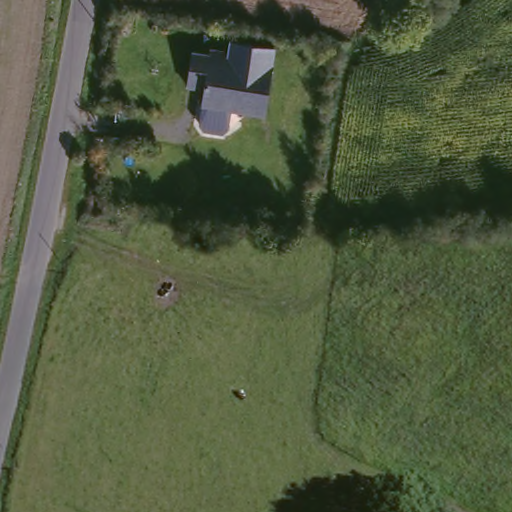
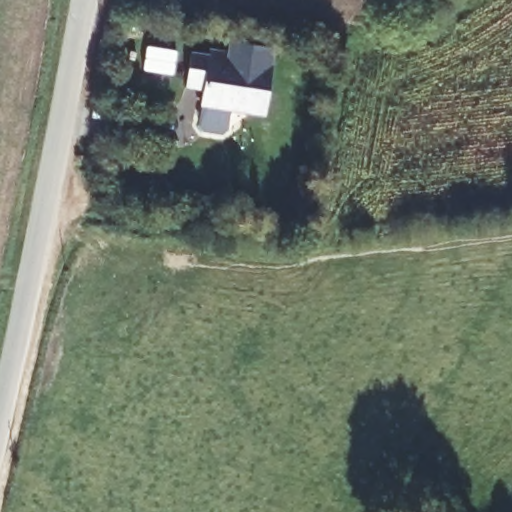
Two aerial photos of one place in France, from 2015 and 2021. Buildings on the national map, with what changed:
unchanged [(269,112),(206,103),(208,87),(190,84),(195,51),(214,53),(214,47),(255,53),(255,59),(276,62),(269,112)]

